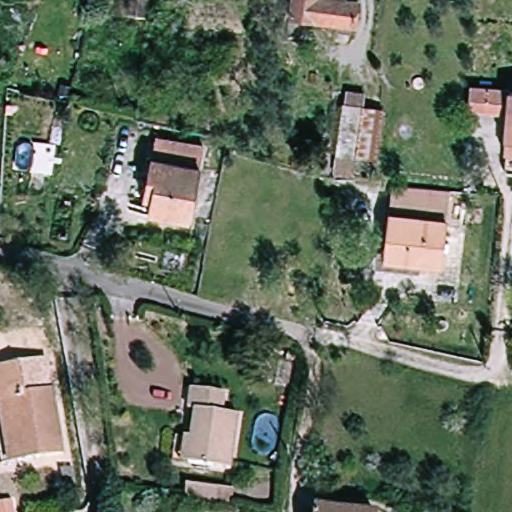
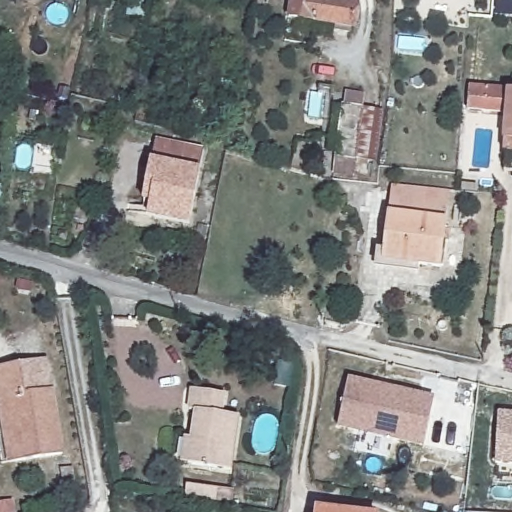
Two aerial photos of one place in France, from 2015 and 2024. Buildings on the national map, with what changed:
unchanged [(293,21),(297,0),(348,0),(348,1),(363,5),(357,33),(293,21)]
unchanged [(512,146),(508,146),(510,115),(467,111),(469,83),(512,85),(512,146)]
unchanged [(375,160),(361,158),(358,158),(355,175),(337,173),(345,106),(348,106),(349,93),(364,94),(363,108),(369,109),(380,111),(375,160)]
unchanged [(320,141),(314,141),(315,135),(321,136),(320,141)]
unchanged [(204,150),(191,225),(152,218),(154,204),(148,202),(158,141),(204,150)]
unchanged [(446,195),(440,263),(383,257),(389,190),(446,195)]
unchanged [(23,365),(28,394),(55,390),(65,454),(18,461),(10,397),(0,398),(0,368),(23,365)]
new [(349,377),(436,397),(423,447),(338,428),(349,377)]
unchanged [(187,438),(197,440),(201,413),(195,412),(198,393),(229,397),(226,417),(243,420),(233,473),(193,467),(182,465),(187,438)]
new [(499,412),(512,413),(512,465),(496,464),(499,412)]
unchanged [(180,481),(224,481),(224,498),(180,498),(180,481)]
unchanged [(350,512),(317,512),(317,507),(350,512)]

